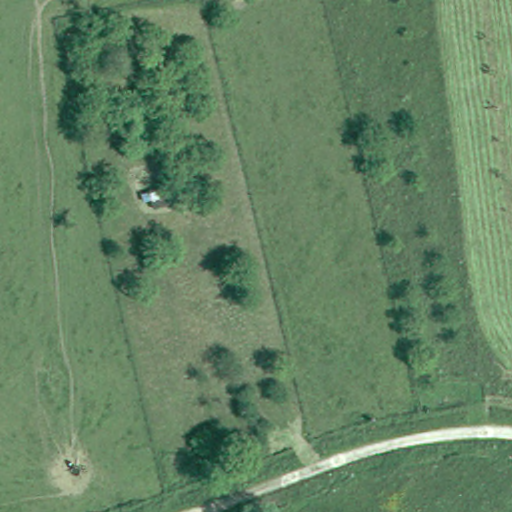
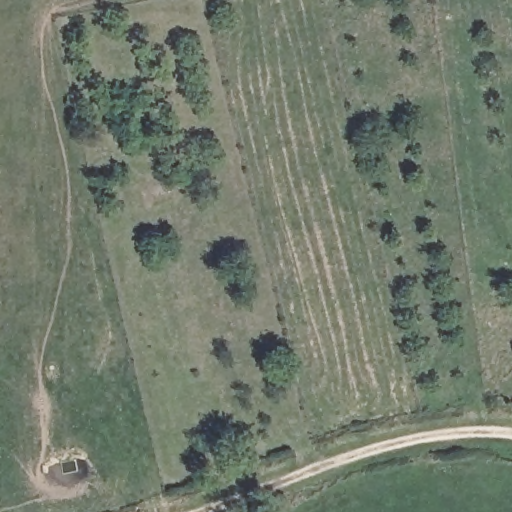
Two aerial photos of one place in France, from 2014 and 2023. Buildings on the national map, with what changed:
unchanged [(148,169),(161,166),(170,163),(172,168),(180,166),(184,182),(177,184),(179,191),(167,193),(157,196),(148,169)]

